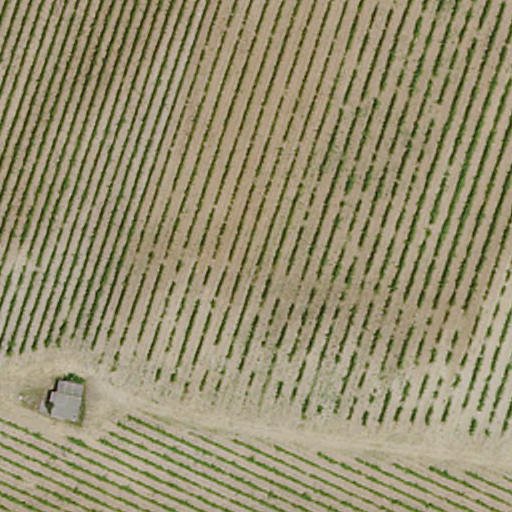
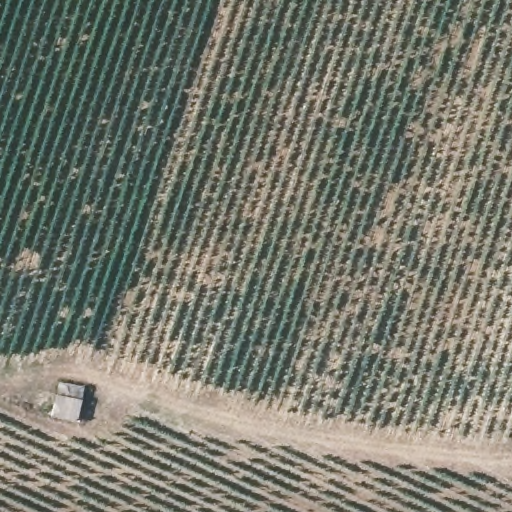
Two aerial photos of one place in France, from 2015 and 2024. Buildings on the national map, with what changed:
unchanged [(39,414),(50,385),(92,400),(82,427),(39,414)]

